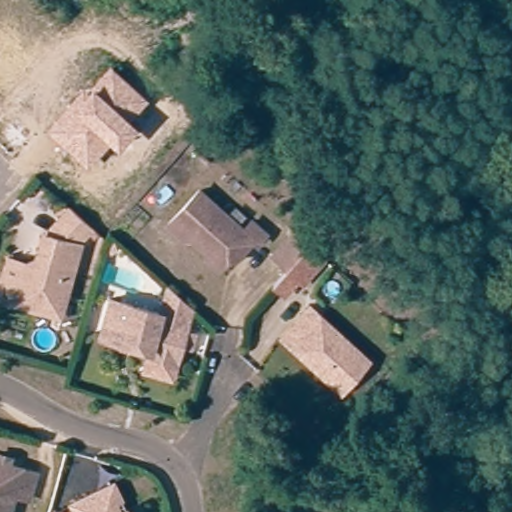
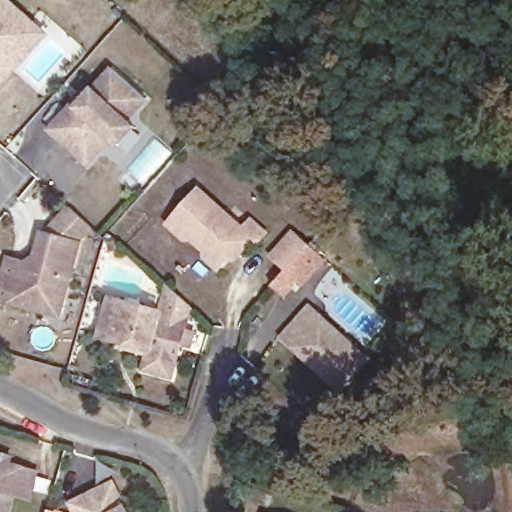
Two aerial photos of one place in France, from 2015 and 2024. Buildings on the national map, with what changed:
new [(0,86),(0,0),(8,0),(46,35),(0,86)]
unchanged [(148,100),(129,122),(138,127),(118,150),(110,142),(87,169),(46,129),(84,87),(88,91),(109,65),(148,100)]
unchanged [(201,186),(246,227),(257,216),(268,229),(259,240),(251,234),(226,258),(193,230),(187,235),(170,220),(201,186)]
unchanged [(49,303),(2,290),(12,249),(41,257),(49,225),(73,200),(96,220),(82,235),(69,295),(66,308),(49,303)]
unchanged [(310,281),(304,275),(294,266),(292,268),(279,255),(301,232),(314,244),(325,253),(331,259),(310,281)]
unchanged [(146,365),(151,346),(101,333),(113,295),(163,310),(170,285),(189,303),(194,307),(188,326),(182,349),(175,373),(146,365)]
unchanged [(344,390),(283,336),(302,315),(311,306),(324,318),(371,360),(344,390)]
unchanged [(10,512),(0,512),(0,459),(25,466),(40,470),(36,482),(31,497),(16,493),(10,512)]
unchanged [(129,507),(131,512),(80,512),(76,502),(94,493),(115,483),(120,497),(109,502),(123,510),(129,507)]
unchanged [(272,507),(288,512),(270,512),(272,507)]

